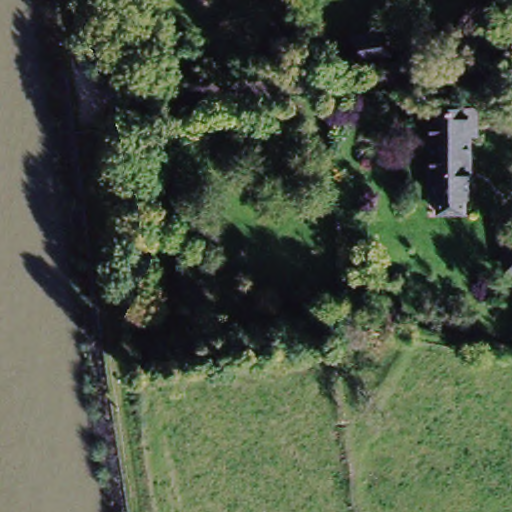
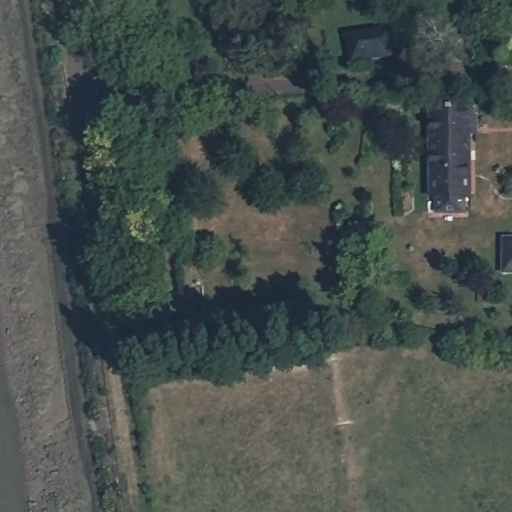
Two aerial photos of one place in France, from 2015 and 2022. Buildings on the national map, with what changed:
unchanged [(387,32),(393,61),(352,67),(347,38),(387,32)]
unchanged [(481,110),(481,132),(473,132),(474,211),(437,213),(437,111),(481,110)]
unchanged [(512,244),(512,276),(504,277),(504,244),(512,244)]

